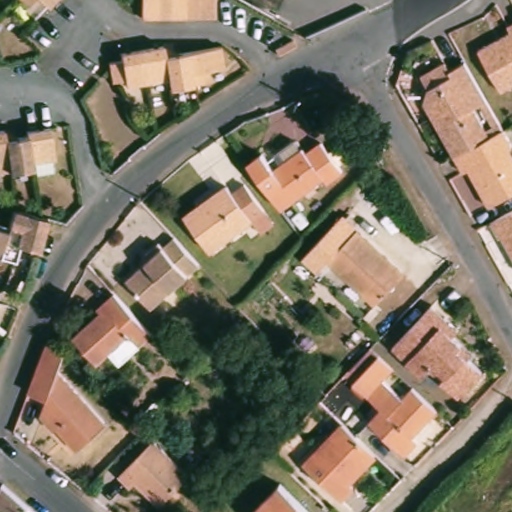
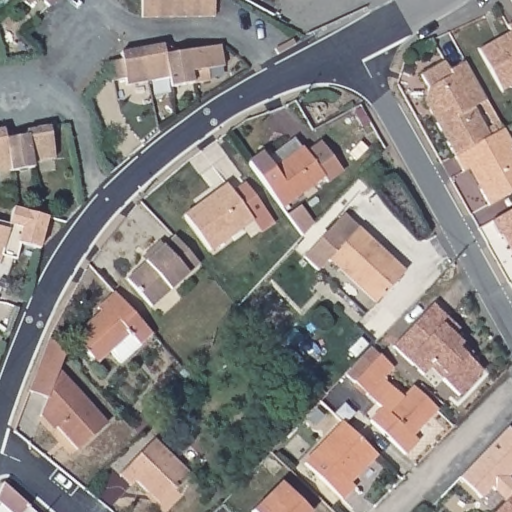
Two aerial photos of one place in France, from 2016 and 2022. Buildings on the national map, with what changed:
unchanged [(42,3),(34,12),(20,0),(63,0),(52,11),(42,3)]
unchanged [(195,16),(181,16),(167,16),(152,16),(137,16),(137,0),(209,0),(209,16),(195,16)]
unchanged [(512,44),(512,96),(509,98),(486,58),(512,44)]
unchanged [(222,50),(225,71),(209,73),(210,85),(194,87),(171,91),(170,83),(148,86),(127,90),(126,84),(112,86),(110,66),(123,64),(122,56),(144,54),(164,50),(179,56),(189,55),(222,50)]
unchanged [(432,104),(435,91),(428,79),(452,65),(457,73),(473,64),(496,103),(482,110),(498,137),(462,157),(432,104)]
unchanged [(23,125),(22,120),(45,116),(50,148),(27,152),(29,159),(8,162),(0,163),(0,121),(12,127),(23,125)]
unchanged [(498,137),(510,131),(512,135),(512,197),(497,205),(488,190),(492,187),(481,167),(471,172),(462,157),(498,137)]
unchanged [(303,147),(317,137),(337,165),(323,175),(318,170),(276,200),(255,170),(297,140),(303,147)]
unchanged [(217,194),(229,185),(257,225),(245,234),(236,221),(194,251),(168,216),(182,206),(197,196),(212,186),(217,194)]
unchanged [(0,253),(0,226),(2,226),(4,220),(6,205),(42,211),(35,243),(17,240),(16,246),(12,256),(0,253)]
unchanged [(324,230),(342,211),(403,271),(375,300),(327,255),(337,244),(324,230)]
unchanged [(507,238),(500,222),(512,216),(512,241),(510,237),(507,238)]
unchanged [(144,255),(159,242),(163,246),(173,237),(197,265),(149,308),(124,280),(147,260),(144,255)]
unchanged [(150,331),(136,342),(127,332),(94,360),(70,334),(98,310),(94,305),(100,300),(112,290),(150,331)]
unchanged [(418,377),(387,349),(426,307),(454,333),(447,340),(456,347),(467,357),(462,362),(476,375),(453,399),(436,383),(424,371),(418,377)]
unchanged [(36,406),(39,400),(42,390),(24,383),(44,331),(54,342),(59,347),(52,365),(100,417),(70,443),(49,419),(45,422),(36,406)]
unchanged [(366,389),(352,376),(354,375),(345,366),(365,345),(373,353),(387,366),(366,389)]
unchanged [(387,393),(393,399),(407,385),(431,408),(407,434),(413,440),(399,454),(362,419),(380,400),(387,393)]
unchanged [(369,451),(343,478),(348,483),(336,496),(299,460),(337,420),(369,451)]
new [(504,423),(512,431),(512,465),(503,473),(512,482),(512,483),(500,496),(490,485),(478,495),(456,473),(504,423)]
unchanged [(147,487),(135,476),(130,481),(117,470),(151,435),(187,469),(164,493),(159,499),(147,487)]
unchanged [(274,480),(305,510),(303,512),(245,512),(244,511),(274,480)]
new [(500,496),(512,483),(512,512),(484,512),(500,496)]
unchanged [(31,510),(30,512),(7,512),(0,505),(0,492),(6,487),(31,510)]

